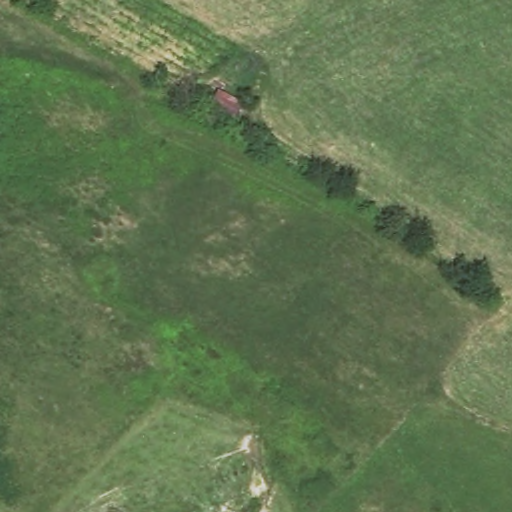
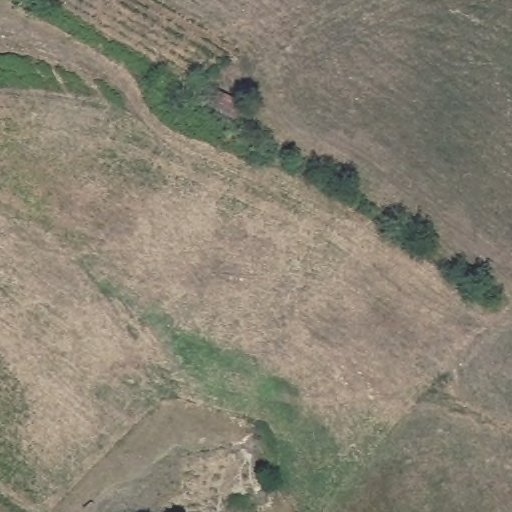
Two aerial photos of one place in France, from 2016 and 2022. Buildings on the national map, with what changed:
unchanged [(245,104),(236,121),(209,105),(215,87),(245,104)]

